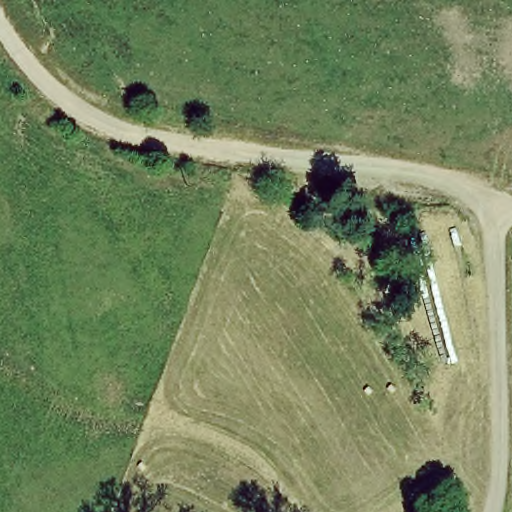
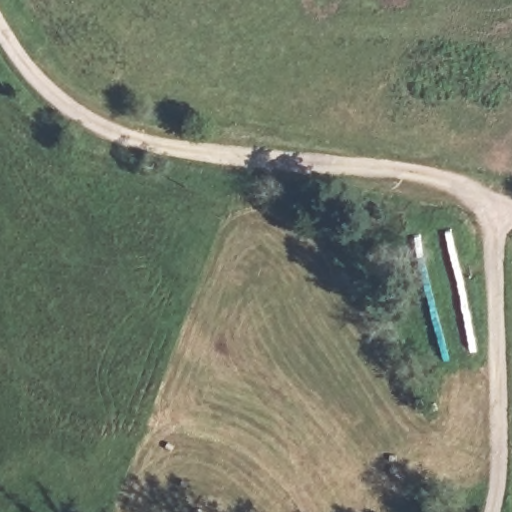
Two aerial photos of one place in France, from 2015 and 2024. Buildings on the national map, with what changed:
unchanged [(487,350),(457,352),(450,229),(483,226),(487,350)]

